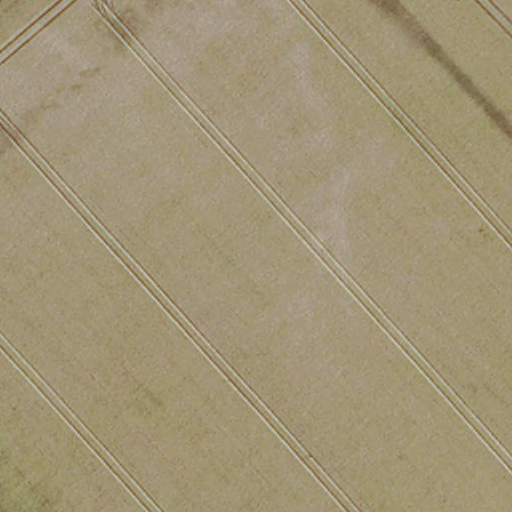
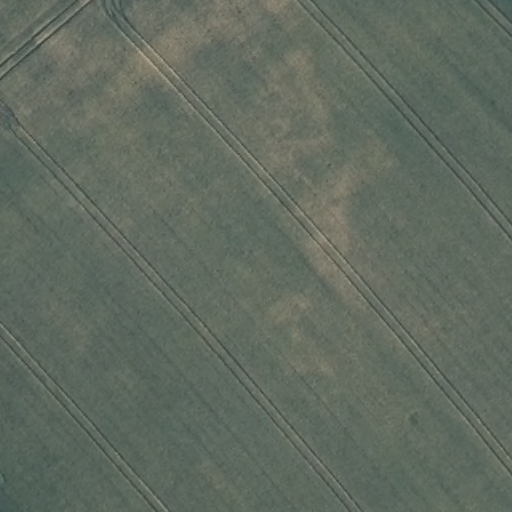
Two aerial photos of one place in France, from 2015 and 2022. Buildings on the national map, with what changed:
[]

